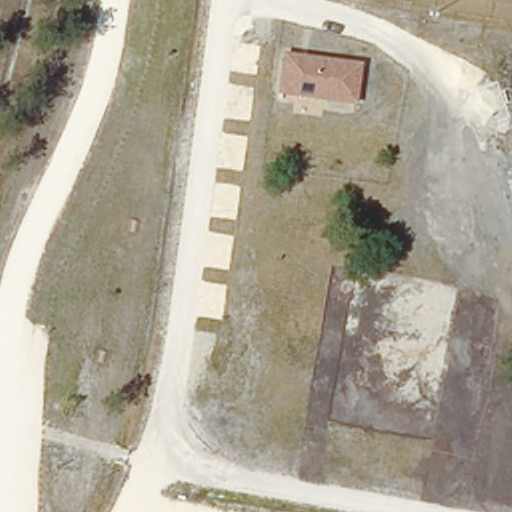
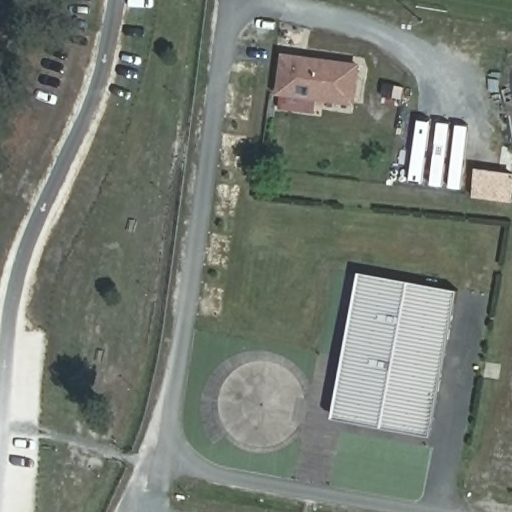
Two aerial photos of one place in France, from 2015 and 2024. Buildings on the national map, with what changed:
unchanged [(361,63),(357,104),(278,95),(285,52),(361,63)]
new [(333,416),(360,271),(459,289),(432,434),(333,416)]

